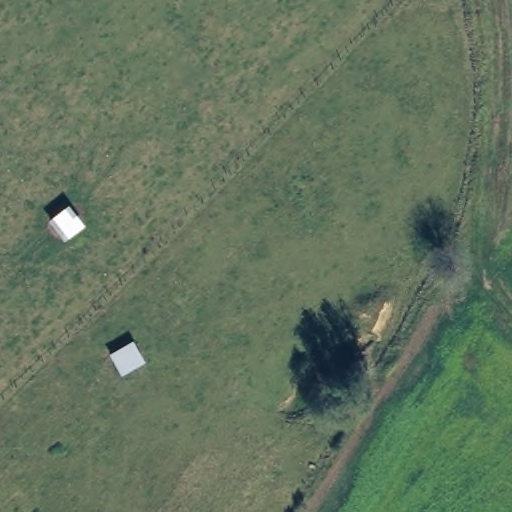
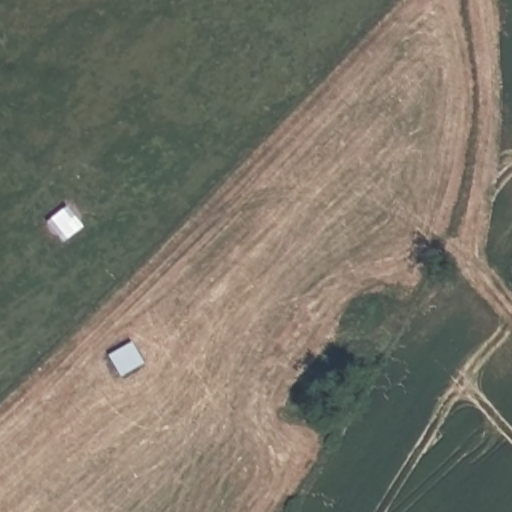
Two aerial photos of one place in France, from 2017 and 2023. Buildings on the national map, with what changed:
unchanged [(147,365),(125,379),(112,356),(135,345),(147,365)]

